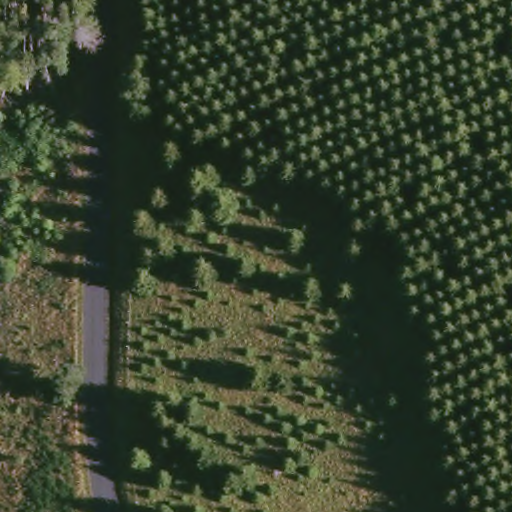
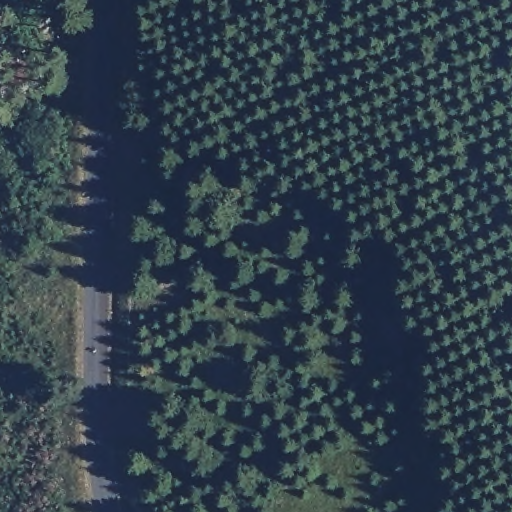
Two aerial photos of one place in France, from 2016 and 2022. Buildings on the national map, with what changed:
[]

